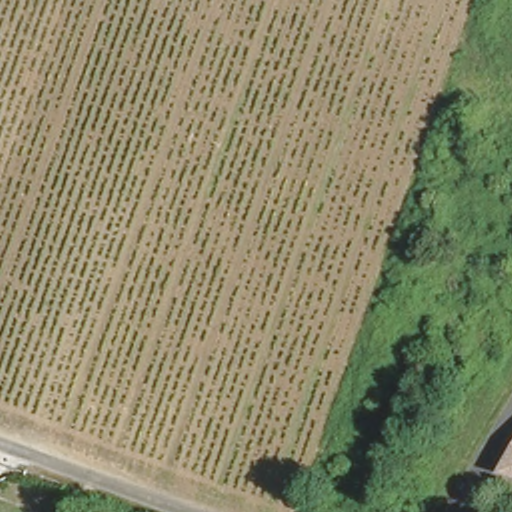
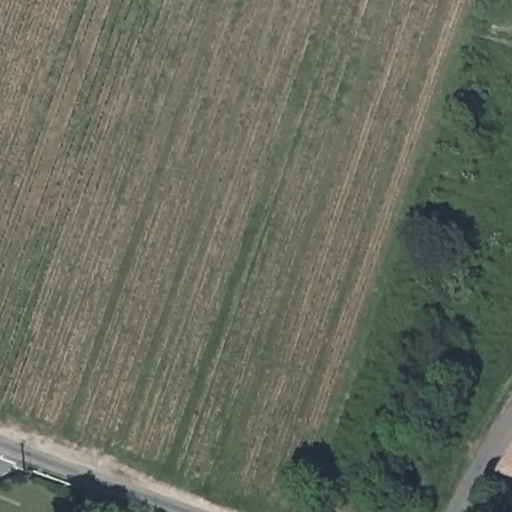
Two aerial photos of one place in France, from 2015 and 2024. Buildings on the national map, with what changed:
unchanged [(503,472),(512,458),(512,475),(503,472)]

